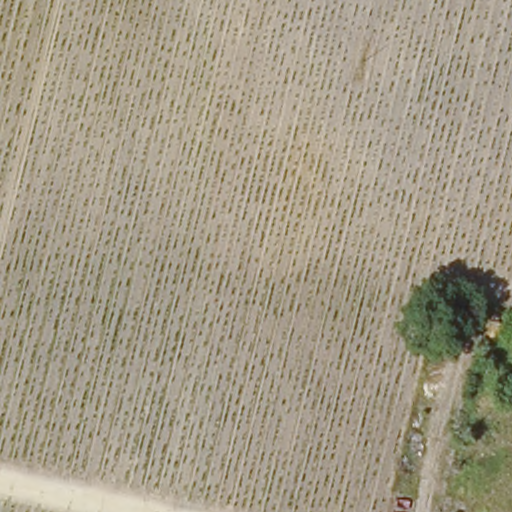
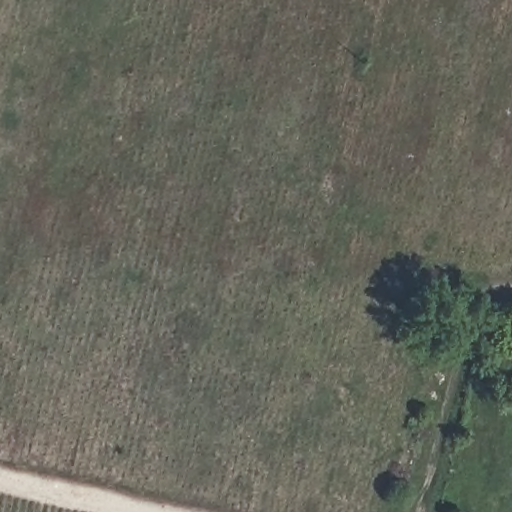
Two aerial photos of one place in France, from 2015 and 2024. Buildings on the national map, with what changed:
unchanged [(494,322),(491,335),(479,333),(481,320),(494,322)]

